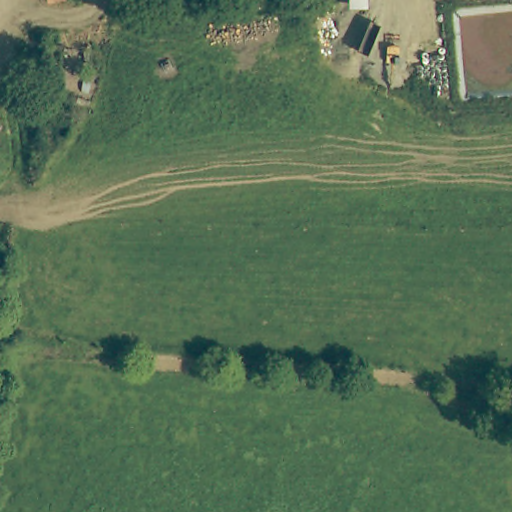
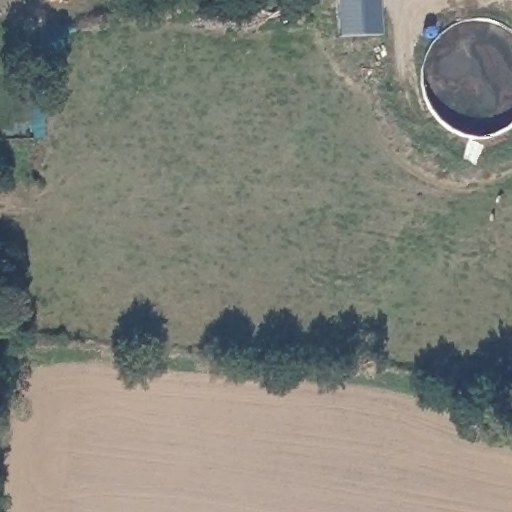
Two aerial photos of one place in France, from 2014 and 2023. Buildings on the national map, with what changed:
unchanged [(74,0),(49,3),(48,0),(74,0)]
new [(375,0),(376,35),(335,36),(334,0),(375,0)]

